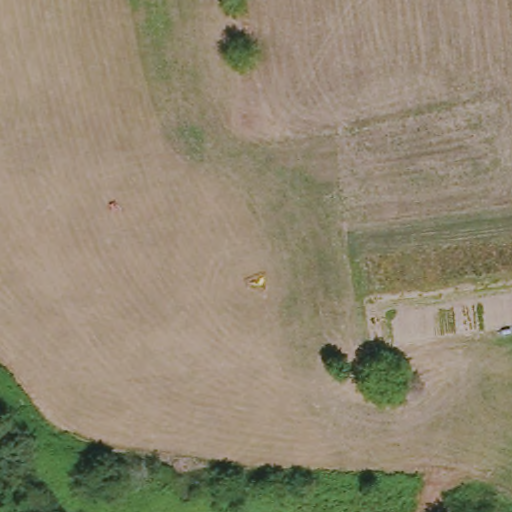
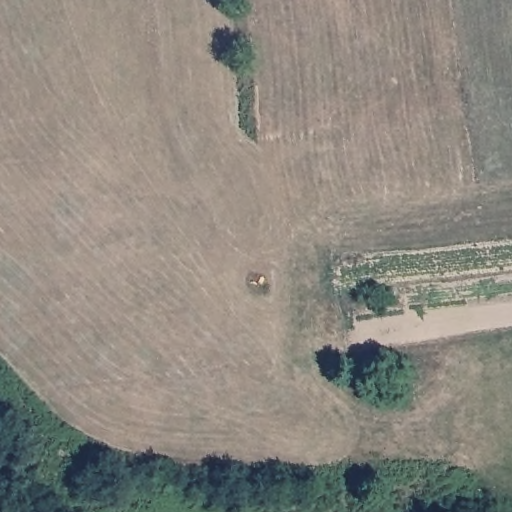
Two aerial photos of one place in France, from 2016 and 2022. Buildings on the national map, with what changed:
[]

